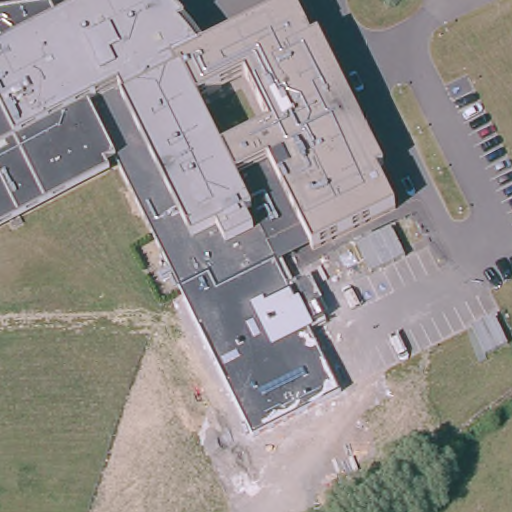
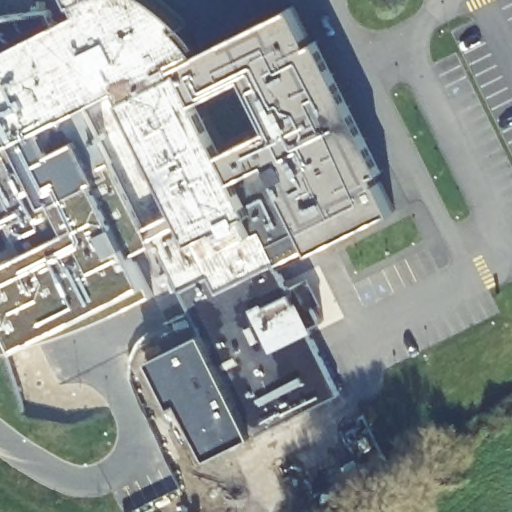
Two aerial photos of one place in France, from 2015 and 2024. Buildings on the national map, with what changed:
unchanged [(295,7),(312,43),(320,40),(385,176),(378,179),(395,212),(315,251),(302,227),(270,161),(233,179),(220,151),(272,127),(249,79),(197,105),(177,63),(202,50),(295,7)]
new [(0,323),(2,322),(0,319),(0,264),(30,252),(11,218),(112,169),(108,161),(117,157),(158,241),(131,252),(148,286),(155,293),(90,323),(15,348),(0,352),(0,323)]
unchanged [(289,285),(308,275),(332,323),(310,335),(341,395),(253,436),(180,286),(210,272),(217,287),(276,259),(289,285)]
new [(180,401),(172,403),(152,359),(203,333),(253,436),(210,456),(180,401)]

